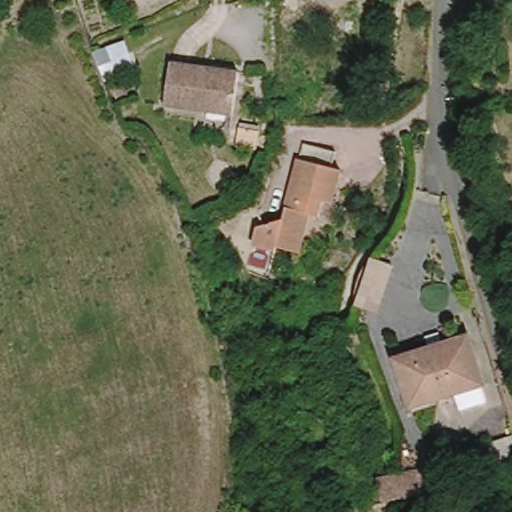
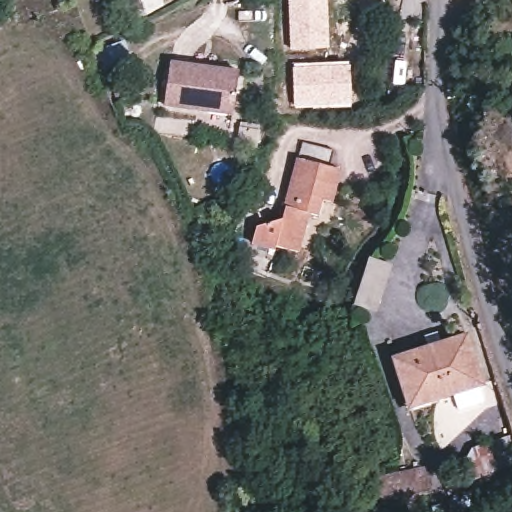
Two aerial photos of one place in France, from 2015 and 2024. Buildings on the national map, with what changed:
new [(329,48),(289,49),(287,0),(326,0),(329,48)]
unchanged [(454,0),(475,0),(475,1),(465,0),(454,0)]
unchanged [(231,111),(164,102),(170,58),(237,68),(231,111)]
new [(349,62),(351,106),(292,107),(292,64),(349,62)]
unchanged [(288,204),(303,138),(335,146),(332,164),(344,167),(335,202),(325,199),(322,211),(313,209),(288,204)]
unchanged [(303,251),(280,245),(279,248),(260,243),(262,228),(267,226),(285,218),(288,204),(313,209),(303,251)]
new [(365,258),(390,265),(376,314),(351,307),(365,258)]
unchanged [(453,405),(447,389),(404,405),(387,359),(455,332),(473,379),(479,396),(453,405)]
unchanged [(499,472),(485,443),(510,429),(512,433),(512,465),(499,472)]
unchanged [(377,478),(404,472),(412,470),(422,468),(426,467),(430,481),(435,487),(428,489),(420,491),(384,500),(377,478)]

